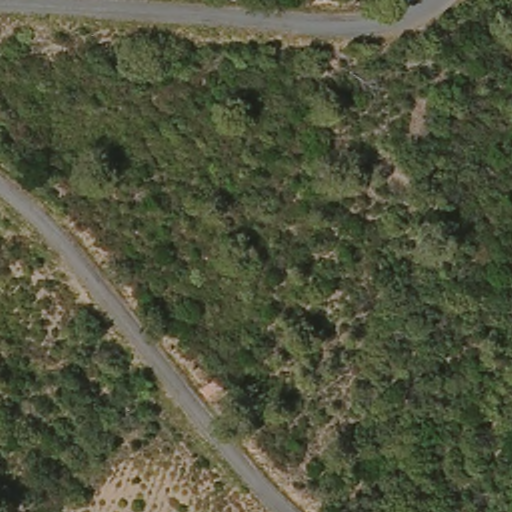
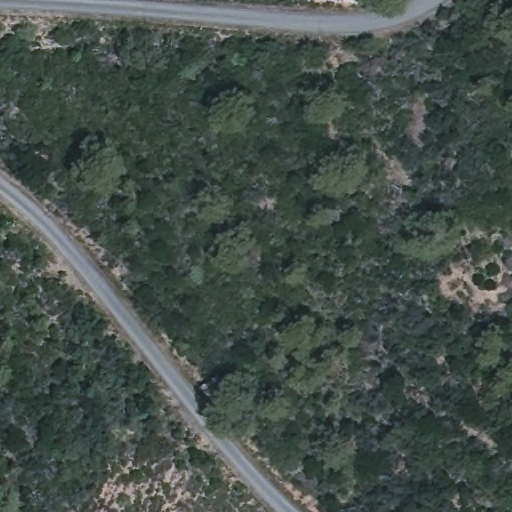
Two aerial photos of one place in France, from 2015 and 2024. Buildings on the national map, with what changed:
unchanged [(218,378),(227,392),(212,405),(200,389),(218,378)]

